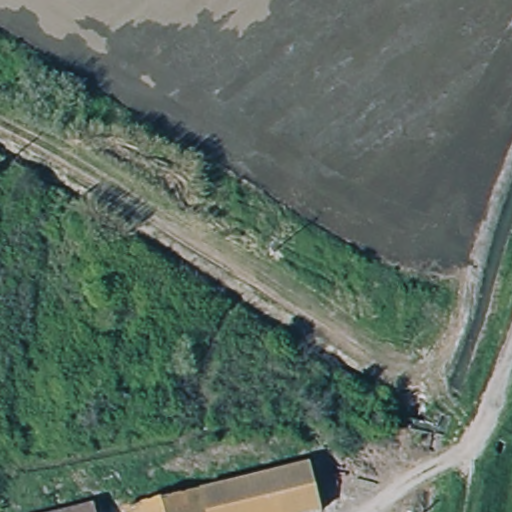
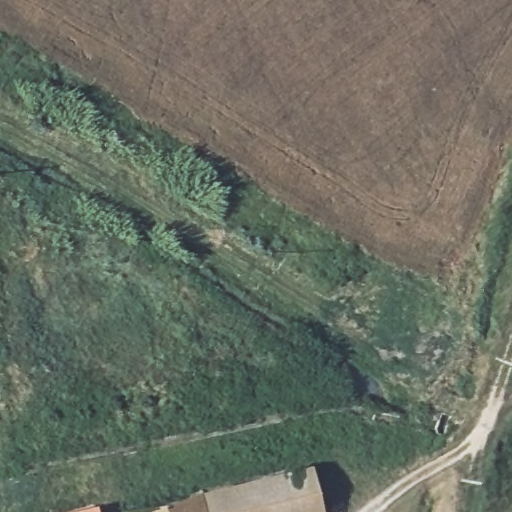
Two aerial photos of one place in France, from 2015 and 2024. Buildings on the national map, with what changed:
unchanged [(307,467),(317,512),(123,512),(122,508),(307,467)]
unchanged [(94,512),(65,512),(92,506),(94,512)]

